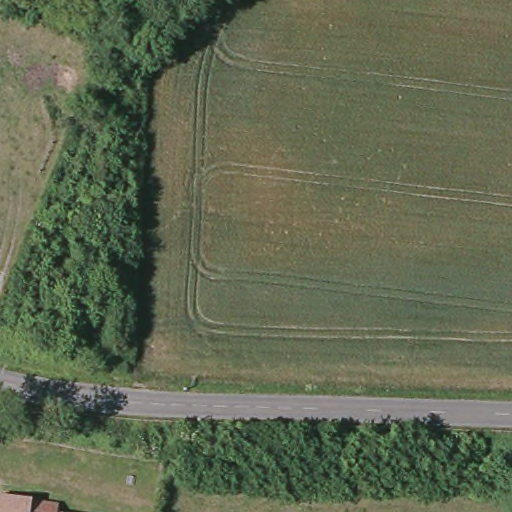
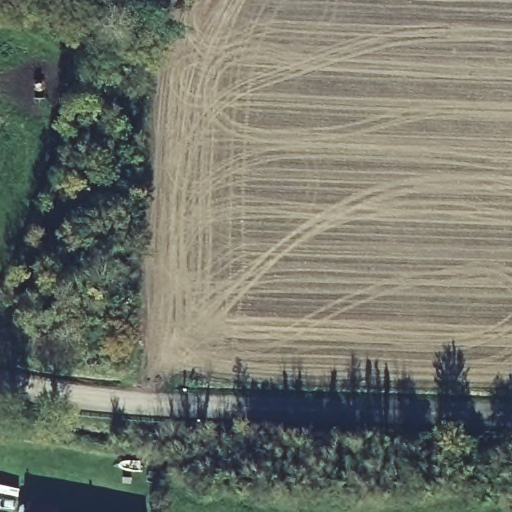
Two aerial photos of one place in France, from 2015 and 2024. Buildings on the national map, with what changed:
unchanged [(54,501),(53,512),(6,512),(8,497),(54,501)]

